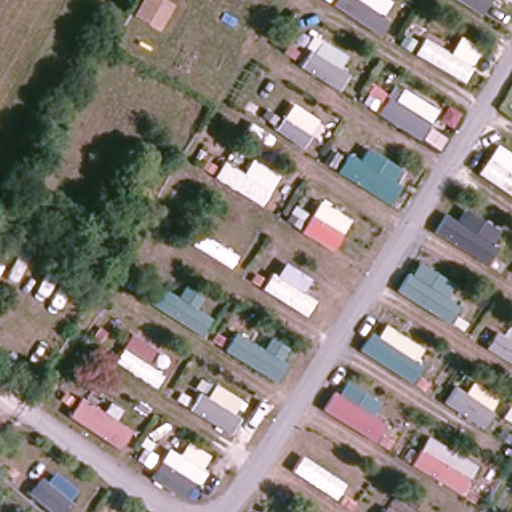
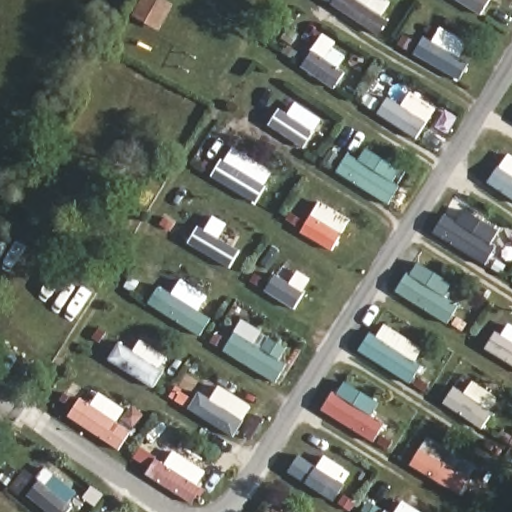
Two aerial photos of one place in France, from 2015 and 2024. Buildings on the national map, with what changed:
unchanged [(160,30),(138,17),(148,0),(157,0),(172,10),(160,30)]

